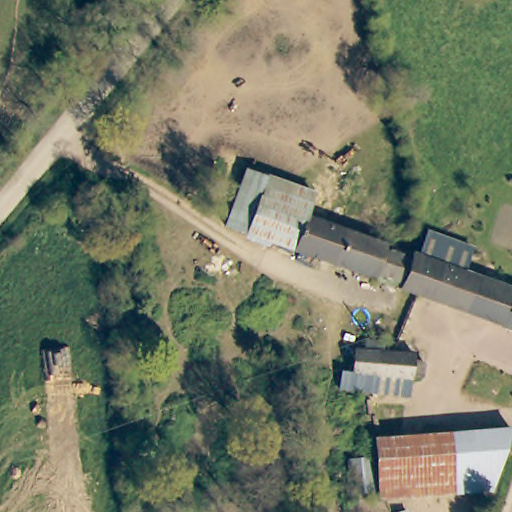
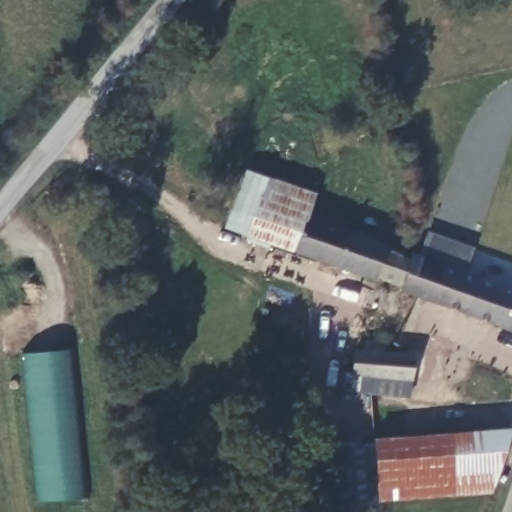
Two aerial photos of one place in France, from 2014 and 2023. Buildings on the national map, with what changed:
unchanged [(248,170),(315,193),(307,216),(379,242),(368,277),(295,250),(228,226),(248,170)]
unchanged [(132,208),(130,206),(128,203),(129,200),(130,197),(133,196),(136,195),(140,197),(141,199),(142,202),(141,205),(139,208),(135,209),(132,208)]
unchanged [(84,248),(75,217),(96,211),(105,242),(84,248)]
unchanged [(426,234),(470,250),(461,272),(418,256),(426,234)]
unchanged [(400,289),(368,277),(379,242),(410,254),(400,289)]
unchanged [(503,327),(421,296),(400,289),(410,254),(418,256),(461,272),(512,291),(512,301),(503,327)]
unchanged [(503,327),(512,301),(512,330),(503,327)]
unchanged [(340,390),(342,372),(354,373),(355,352),(350,351),(351,338),(366,339),(386,341),(385,354),(402,355),(417,357),(416,361),(428,362),(427,379),(415,377),(413,397),(372,393),(340,390)]
new [(39,500),(22,352),(75,347),(90,497),(39,500)]
unchanged [(490,495),(377,504),(375,454),(374,443),(471,435),(505,444),(490,495)]

